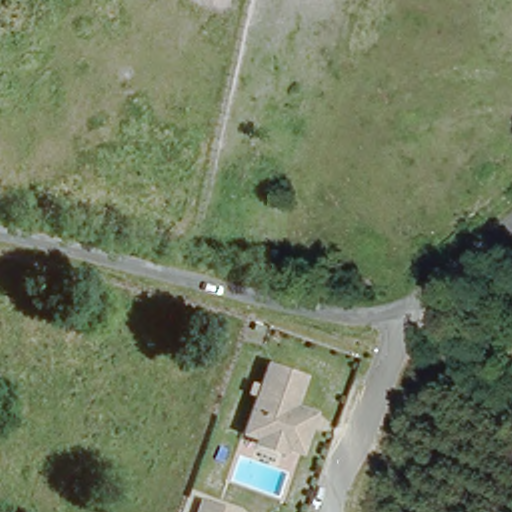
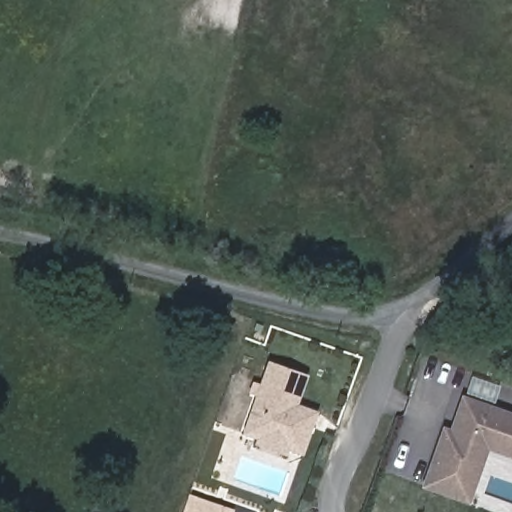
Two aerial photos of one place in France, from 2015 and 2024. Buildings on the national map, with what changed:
unchanged [(257,443),(258,438),(245,433),(257,395),(250,393),(253,384),(260,386),(268,363),(305,376),(295,406),(310,411),(315,413),(311,424),(302,453),(287,448),(286,454),(257,443)]
new [(488,451),(471,504),(422,488),(443,426),(451,429),(462,395),(512,412),(512,458),(488,451)]
unchanged [(204,502),(232,512),(201,512),(204,502)]

